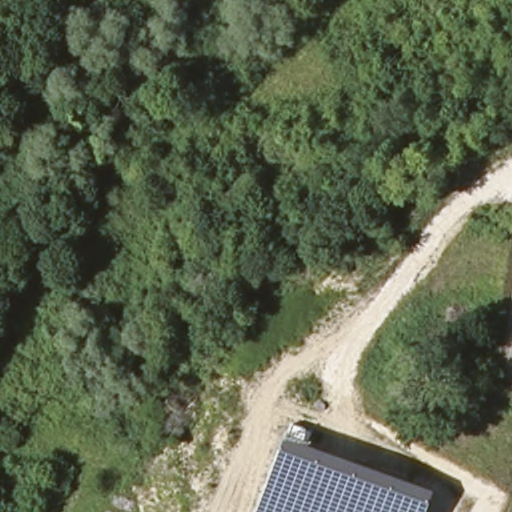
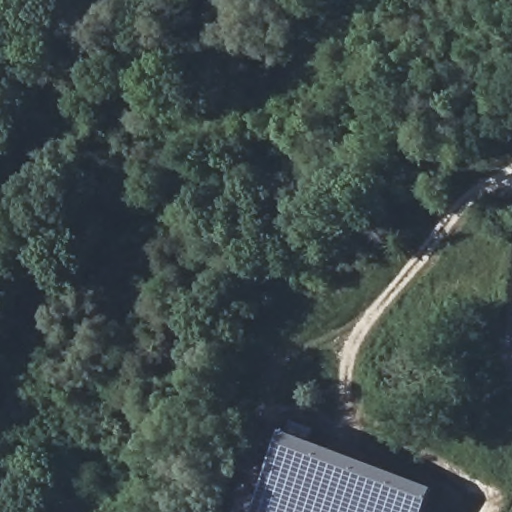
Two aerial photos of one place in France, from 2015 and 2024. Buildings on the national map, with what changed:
unchanged [(283,435),(433,490),(425,512),(254,512),(283,435)]

